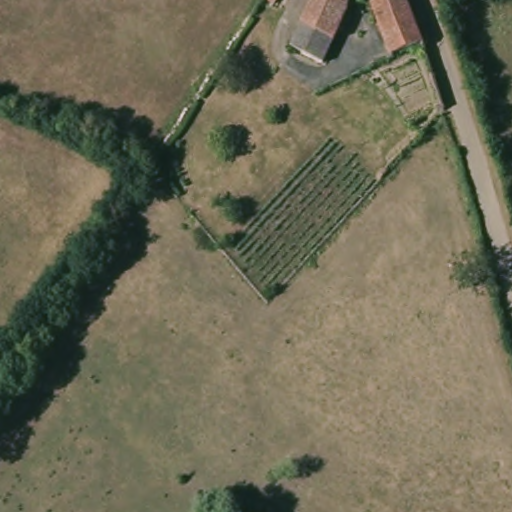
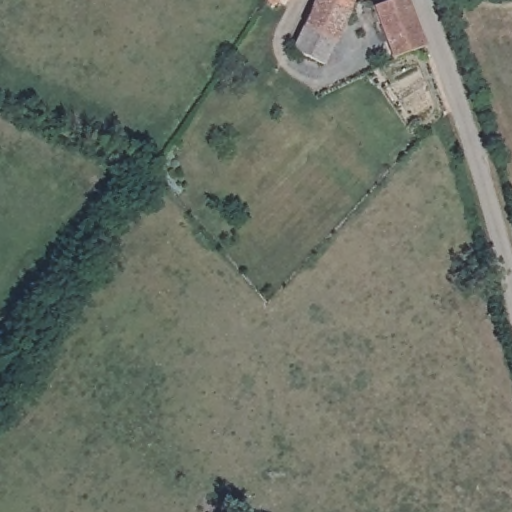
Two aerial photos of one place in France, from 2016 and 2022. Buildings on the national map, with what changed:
unchanged [(264,0),(272,0),(270,2),(264,0)]
unchanged [(289,51),(312,0),(348,0),(346,7),(319,64),(289,51)]
unchanged [(403,0),(410,0),(427,48),(392,61),(375,11),(403,0)]

